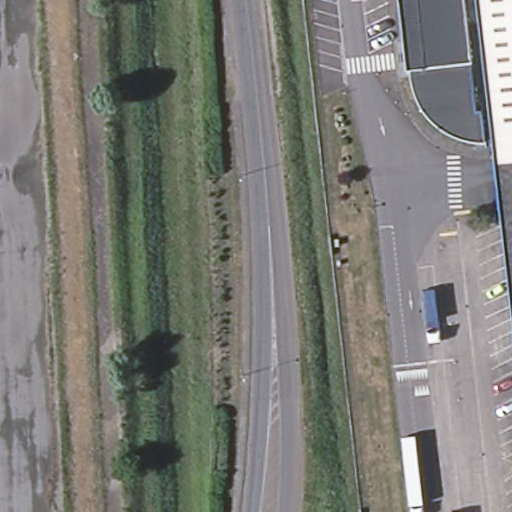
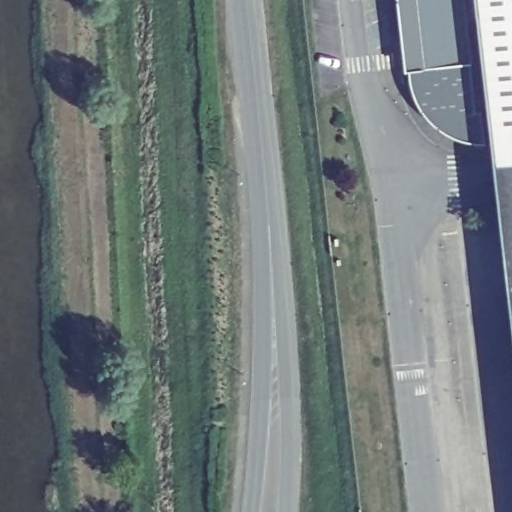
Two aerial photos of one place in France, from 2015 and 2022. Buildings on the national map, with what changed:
unchanged [(465,140),(445,131),(425,115),(414,96),(409,71),(405,71),(397,0),(512,0),(512,305),(494,142),(465,140)]

